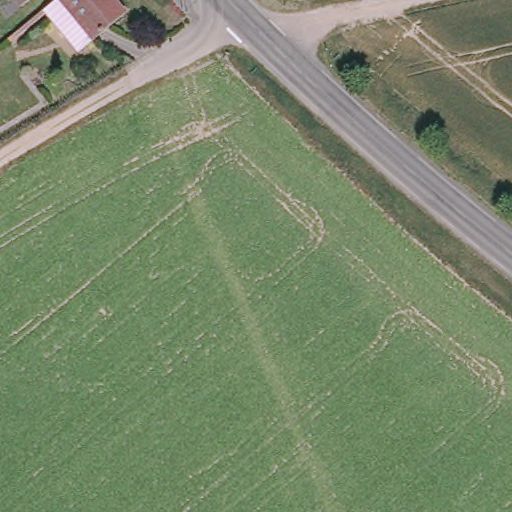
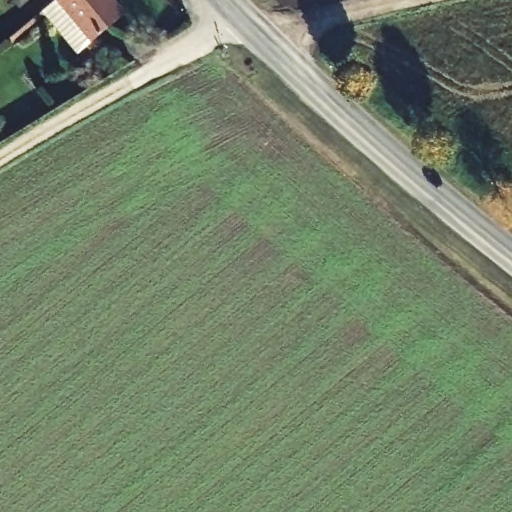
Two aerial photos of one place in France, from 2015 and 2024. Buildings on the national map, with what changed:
unchanged [(10,0),(33,0),(18,11),(10,0)]
unchanged [(108,0),(123,21),(90,45),(58,1),(59,0),(108,0)]

